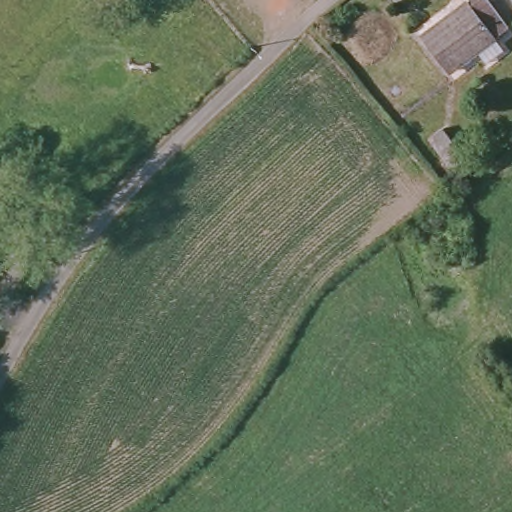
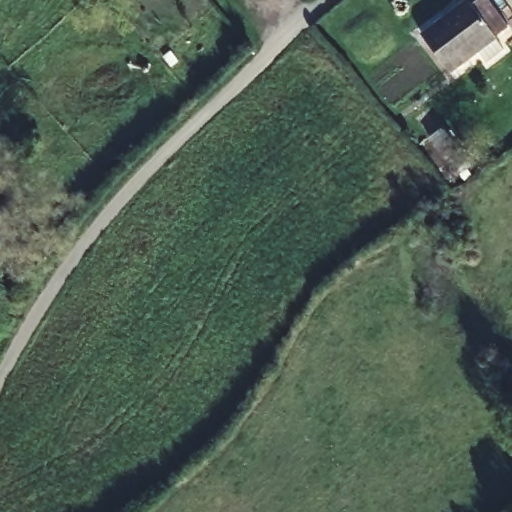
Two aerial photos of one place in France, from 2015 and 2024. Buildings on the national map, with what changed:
unchanged [(486,0),(508,33),(447,75),(423,43),(486,0)]

